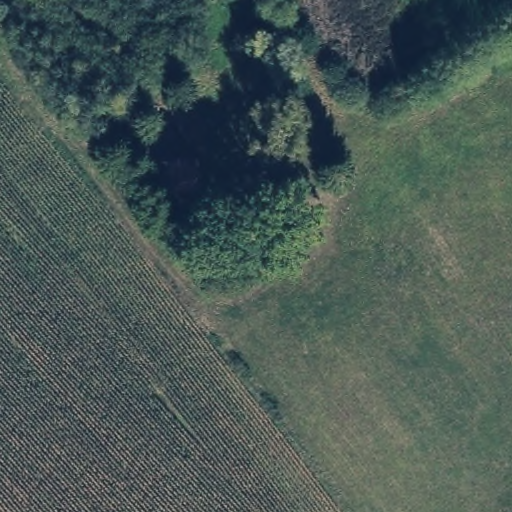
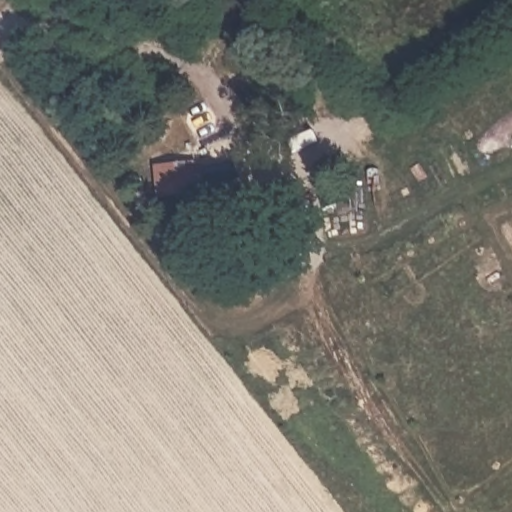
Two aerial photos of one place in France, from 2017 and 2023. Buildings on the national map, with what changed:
unchanged [(197,150),(200,194),(156,197),(155,158),(197,150)]

